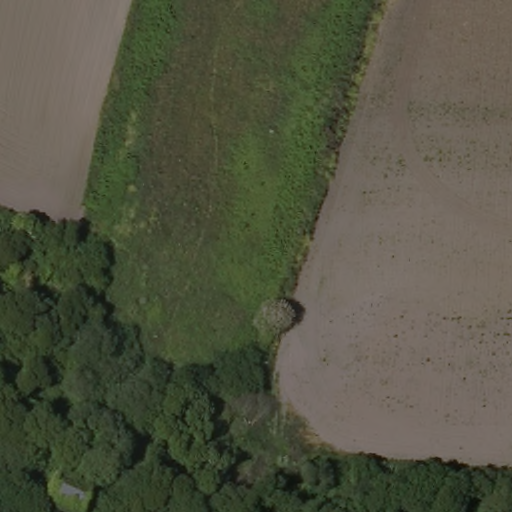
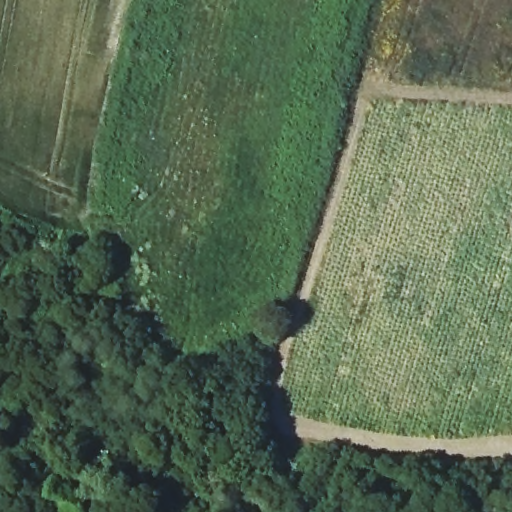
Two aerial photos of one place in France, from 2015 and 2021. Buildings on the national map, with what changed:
unchanged [(89,512),(71,512),(49,503),(61,476),(98,492),(89,512)]

